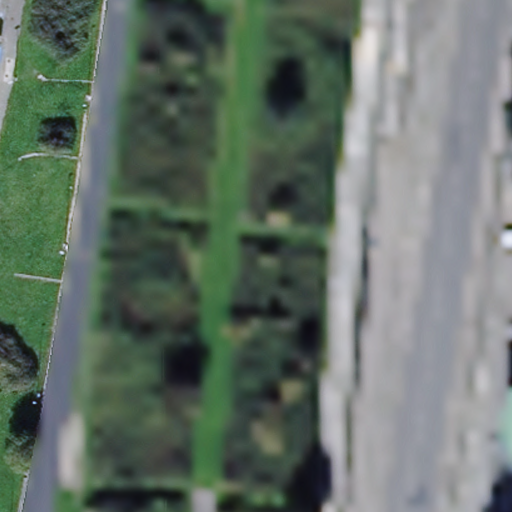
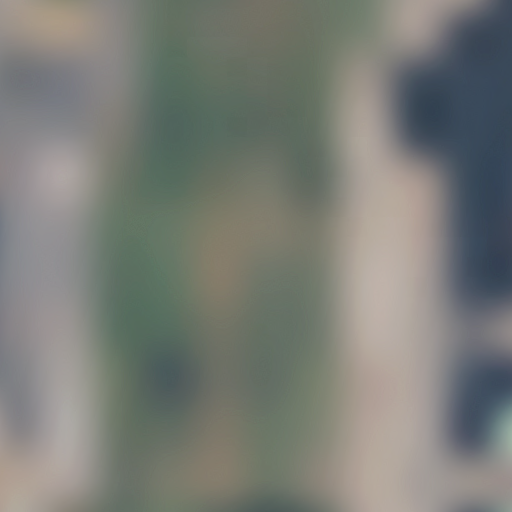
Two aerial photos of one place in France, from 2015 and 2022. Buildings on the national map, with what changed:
unchanged [(4,0),(0,28),(0,0),(4,0)]

